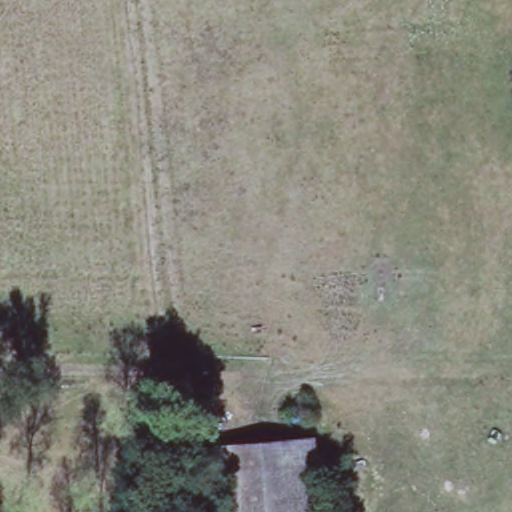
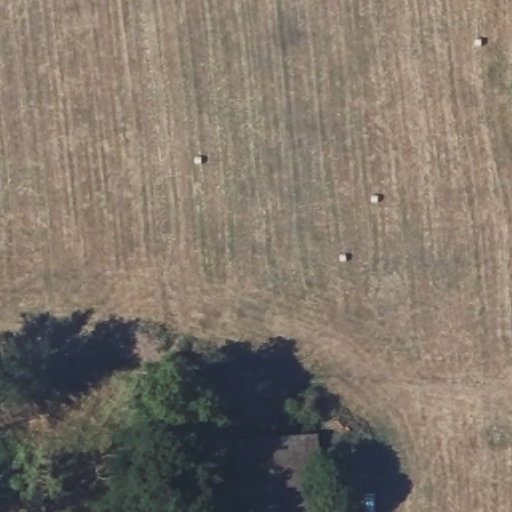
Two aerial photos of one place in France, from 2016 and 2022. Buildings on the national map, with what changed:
unchanged [(219,512),(212,443),(322,434),(330,512),(219,512)]

